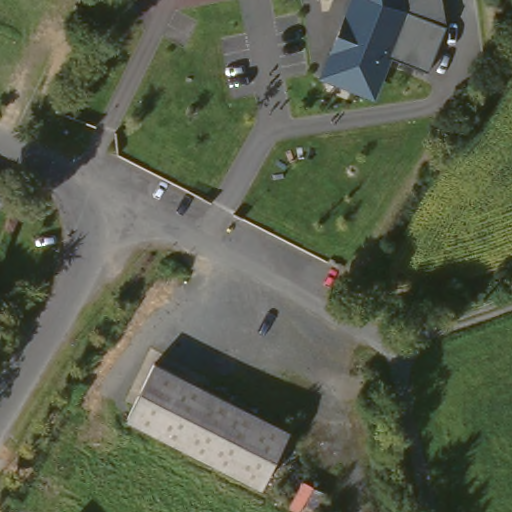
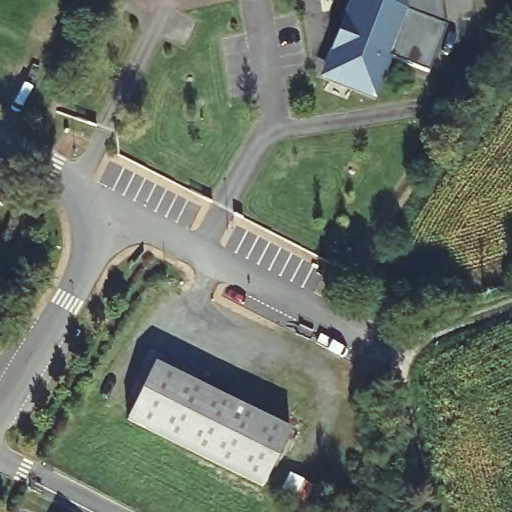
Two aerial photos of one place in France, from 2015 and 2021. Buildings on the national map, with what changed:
unchanged [(345,0),(438,0),(443,23),(424,73),(386,56),(369,99),(315,74),(345,0)]
unchanged [(287,430),(259,486),(124,417),(153,361),(287,430)]

